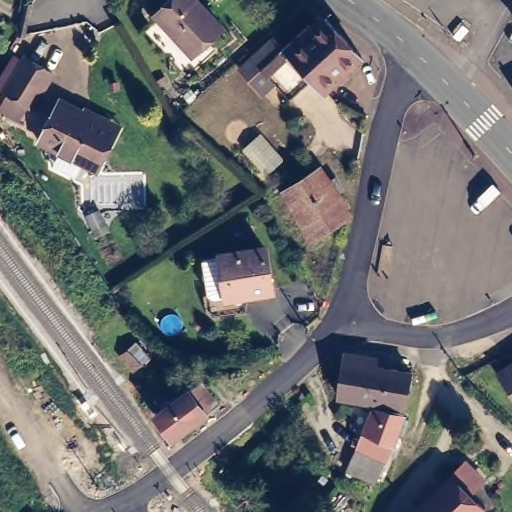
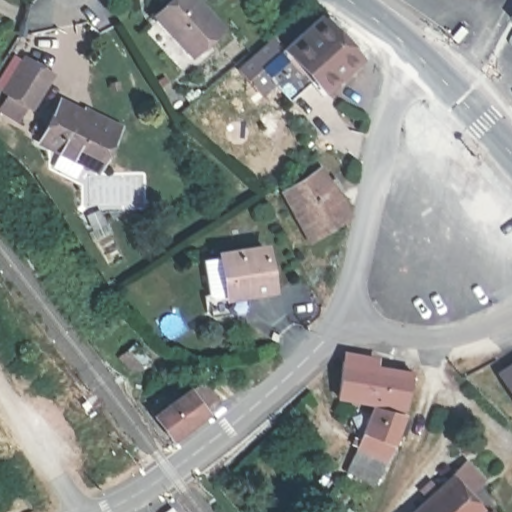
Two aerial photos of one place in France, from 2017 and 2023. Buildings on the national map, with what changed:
unchanged [(194,49),(181,34),(161,11),(165,8),(173,0),(204,0),(224,23),(226,26),(198,53),(194,49)]
unchanged [(321,20),(356,59),(319,91),(284,53),(321,20)]
unchanged [(28,56),(56,73),(35,106),(8,89),(28,56)]
unchanged [(93,168),(40,141),(61,99),(85,112),(86,109),(119,126),(116,134),(98,171),(93,168)]
unchanged [(312,247),(284,198),(319,175),(349,220),(349,223),(312,247)]
unchanged [(268,238),(276,277),(247,283),(250,300),(218,306),(206,251),(268,238)]
unchanged [(417,368),(408,402),(379,397),(343,391),(349,357),(417,368)]
unchanged [(512,372),(512,409),(496,383),(512,372)]
unchanged [(211,387),(224,407),(178,442),(163,423),(211,387)]
unchanged [(399,434),(389,455),(361,442),(378,401),(409,410),(408,413),(413,414),(409,430),(406,437),(399,434)]
unchanged [(430,499),(429,497),(457,472),(466,464),(477,464),(490,478),(476,493),(488,507),(482,512),(416,512),(430,499)]

